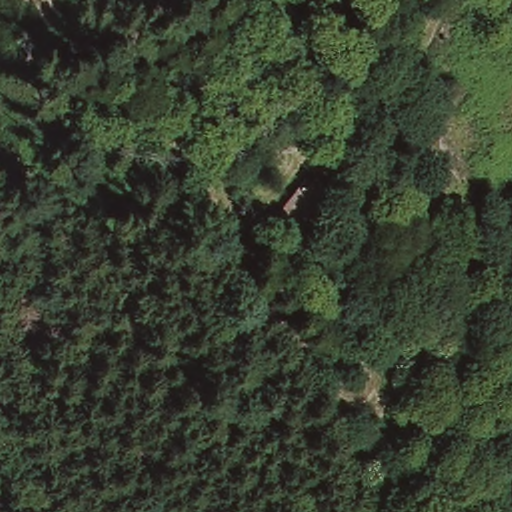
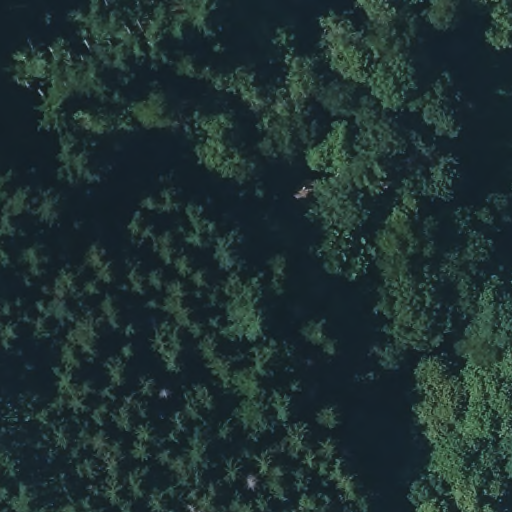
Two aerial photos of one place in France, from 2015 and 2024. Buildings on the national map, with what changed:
unchanged [(326,183),(307,220),(280,204),(300,171),(326,183)]

